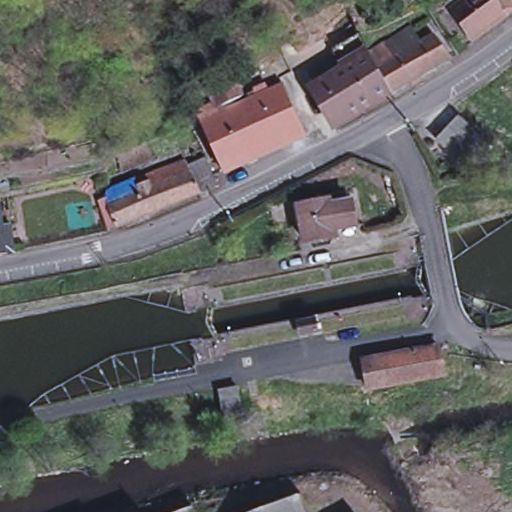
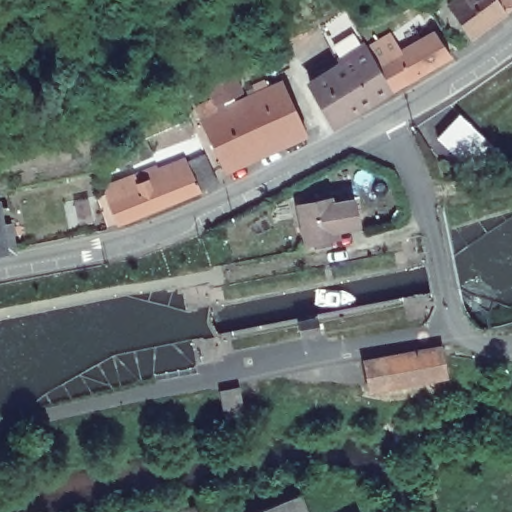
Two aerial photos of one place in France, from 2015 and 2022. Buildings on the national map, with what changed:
unchanged [(470,37),(447,5),(453,0),(512,0),(512,6),(507,10),(470,37)]
unchanged [(389,40),(399,56),(437,32),(450,56),(392,91),(391,90),(334,125),(310,84),(332,70),(321,51),(357,30),(368,49),(370,51),(389,40)]
unchanged [(196,120),(190,108),(214,97),(209,87),(257,65),(256,61),(267,56),(266,53),(278,43),(292,70),(277,77),(280,85),(257,96),(279,145),(225,170),(202,120),(196,120)]
unchanged [(280,85),(282,84),(305,134),(279,145),(257,96),(280,85)]
unchanged [(485,136),(463,160),(436,134),(459,110),(485,136)]
unchanged [(112,188),(190,160),(190,164),(208,157),(220,185),(202,194),(202,192),(119,226),(109,201),(112,200),(110,194),(109,190),(112,188)]
unchanged [(329,195),(330,201),(352,196),(357,220),(335,225),(336,232),(305,238),(297,201),(329,195)]
unchanged [(5,250),(0,250),(0,218),(5,250)]
unchanged [(437,346),(441,375),(366,388),(360,358),(437,346)]
unchanged [(462,359),(464,371),(450,374),(448,361),(462,359)]
unchanged [(240,386),(245,412),(224,416),(220,390),(240,386)]
unchanged [(304,500),(309,512),(270,512),(304,500)]

